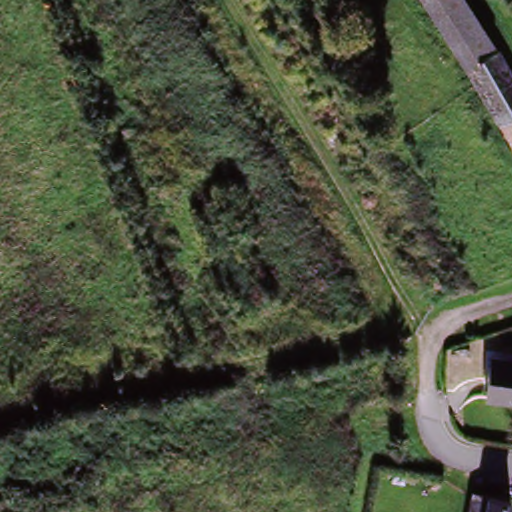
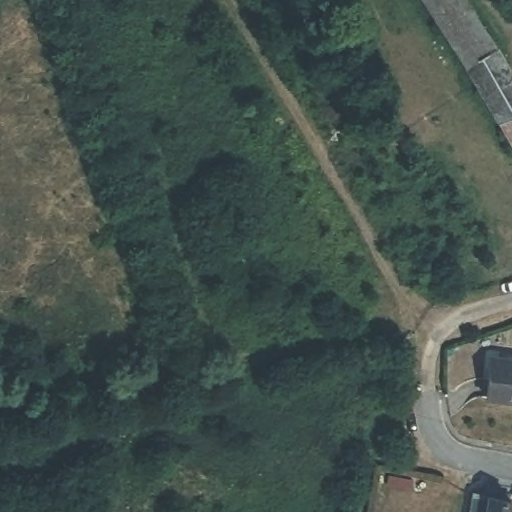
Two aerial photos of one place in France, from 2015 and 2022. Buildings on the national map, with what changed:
unchanged [(468,62),(428,0),(466,0),(496,47),(512,76),(512,144),(468,62)]
unchanged [(485,397),(493,357),(512,361),(512,403),(485,397)]
unchanged [(468,508),(471,492),(500,498),(500,496),(503,493),(508,495),(507,500),(510,500),(507,512),(467,512),(468,508)]

